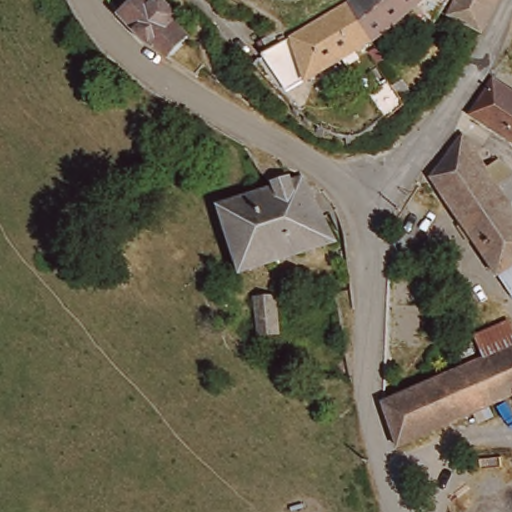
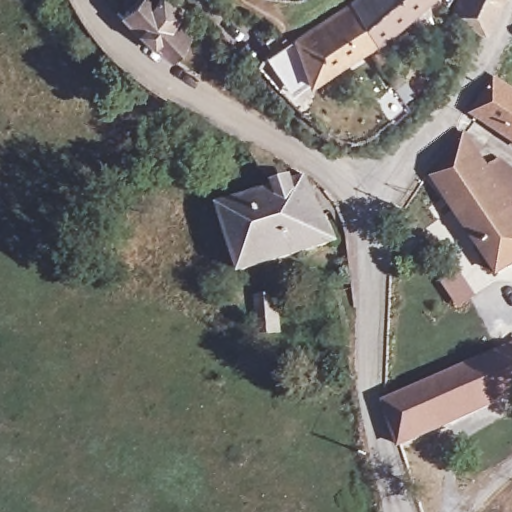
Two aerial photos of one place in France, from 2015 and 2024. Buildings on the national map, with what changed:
unchanged [(162,2),(164,0),(167,0),(184,17),(180,21),(195,39),(175,59),(160,49),(147,37),(135,25),(127,15),(142,0),(161,0),(162,2)]
unchanged [(360,17),(352,4),(358,0),(428,0),(375,42),(360,17)]
unchanged [(485,32),(455,17),(463,0),(501,0),(485,32)]
unchanged [(267,54),(294,37),(296,41),(352,4),(360,17),(375,42),(294,92),(267,54)]
unchanged [(497,79),(512,89),(512,138),(477,115),(497,79)]
unchanged [(437,177),(465,134),(490,167),(503,159),(512,167),(512,267),(500,275),(437,177)]
unchanged [(335,244),(244,272),(220,207),(280,187),(306,179),(335,244)]
unchanged [(512,295),(500,275),(512,267),(512,295)]
unchanged [(284,327),(265,330),(260,293),(280,293),(284,327)]
unchanged [(474,332),(512,312),(512,346),(469,365),(462,348),(476,342),(474,332)]
unchanged [(481,408),(479,410),(442,427),(404,443),(390,400),(469,365),(512,346),(512,394),(507,396),(496,402),(500,412),(485,417),(481,408)]

